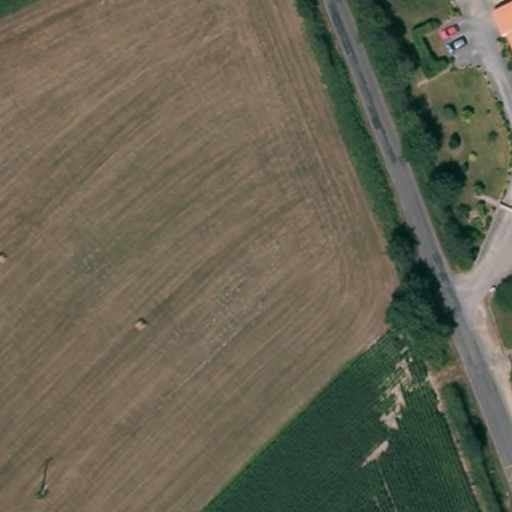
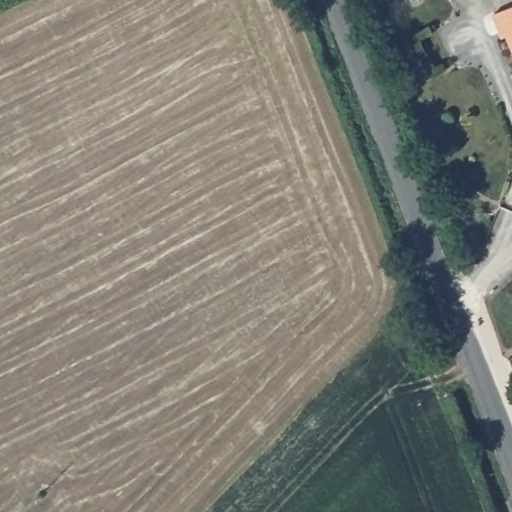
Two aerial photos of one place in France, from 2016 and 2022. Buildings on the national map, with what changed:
unchanged [(494,11),(512,4),(512,41),(509,33),(504,35),(494,11)]

